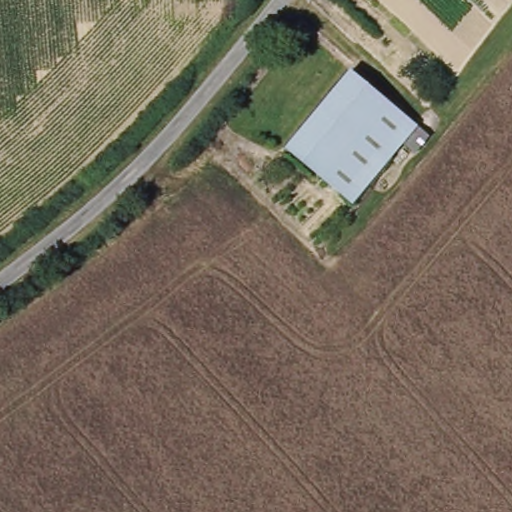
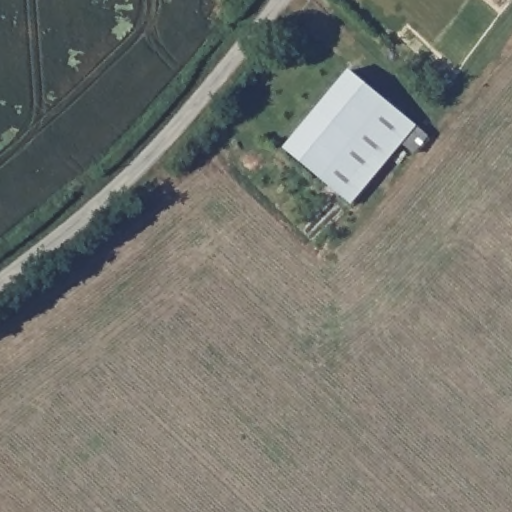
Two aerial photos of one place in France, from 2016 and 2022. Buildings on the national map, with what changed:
unchanged [(352,202),(288,145),(351,71),(428,138),(415,154),(403,144),(352,202)]

